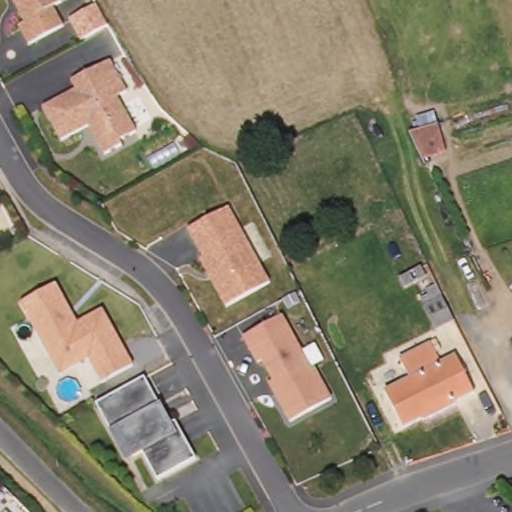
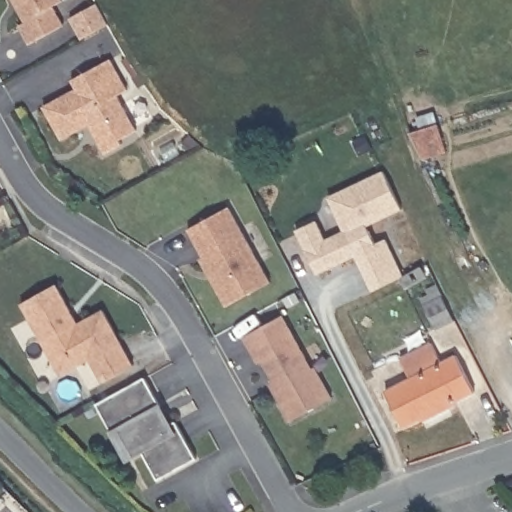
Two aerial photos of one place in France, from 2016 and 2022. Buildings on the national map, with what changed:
unchanged [(49,10),(60,29),(25,47),(15,29),(21,25),(8,0),(56,0),(58,5),(49,10)]
new [(92,7),(104,28),(76,42),(65,22),(92,7)]
unchanged [(71,92),(67,84),(105,63),(122,94),(112,100),(131,135),(115,144),(117,148),(100,157),(84,129),(56,143),(39,110),(71,92)]
unchanged [(446,145),(422,155),(411,132),(438,123),(446,145)]
new [(305,271),(285,230),(306,219),(316,238),(334,229),(325,210),(317,195),(336,186),(371,167),(391,205),(357,222),(366,240),(376,235),(395,272),(363,290),(345,255),(307,274),(305,271)]
unchanged [(197,261),(182,234),(222,212),(263,287),(220,310),(205,283),(194,263),(197,261)]
unchanged [(423,293),(444,283),(456,306),(437,317),(423,293)]
unchanged [(47,358),(19,306),(55,287),(75,326),(101,313),(131,369),(100,386),(87,362),(58,378),(47,358)]
unchanged [(266,375),(255,355),(250,357),(236,331),(275,310),(305,364),(307,363),(330,405),(288,428),(267,390),(261,378),(266,375)]
unchanged [(386,392),(412,380),(401,359),(433,341),(445,362),(457,356),(475,391),(458,400),(460,405),(425,424),(422,420),(405,428),(386,392)]
unchanged [(109,436),(94,407),(142,381),(167,428),(173,425),(193,463),(154,484),(139,456),(130,460),(124,464),(109,436)]

